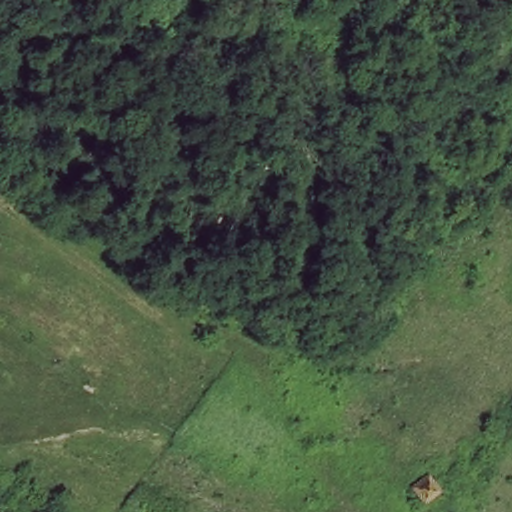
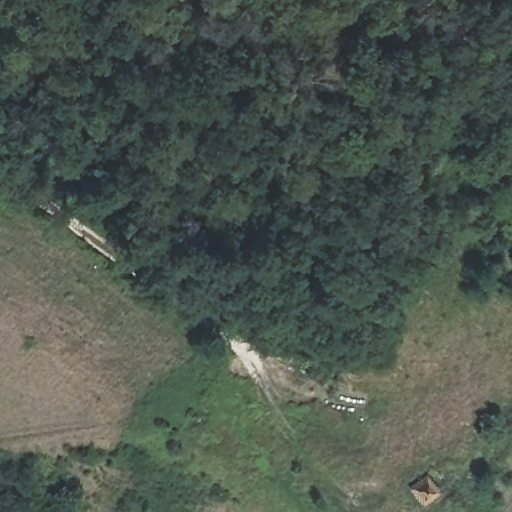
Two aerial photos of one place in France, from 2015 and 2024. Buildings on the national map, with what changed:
unchanged [(423,477),(436,493),(420,509),(408,490),(423,477)]

